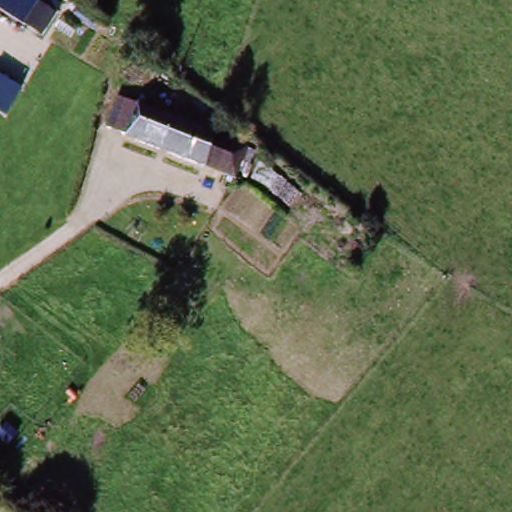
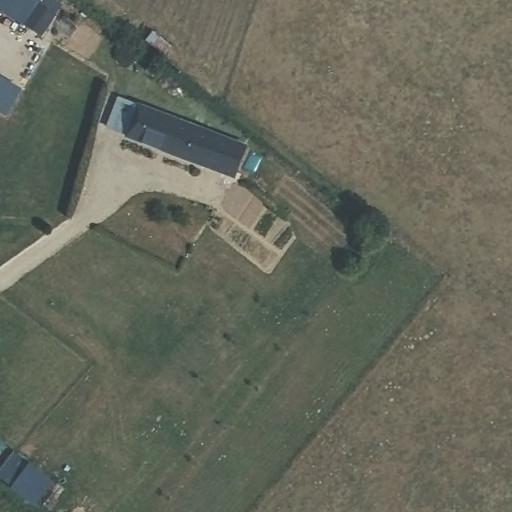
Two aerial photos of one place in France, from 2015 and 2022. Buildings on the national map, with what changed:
unchanged [(43,35),(0,6),(0,0),(38,0),(58,12),(43,35)]
unchanged [(6,115),(0,112),(0,74),(21,85),(6,115)]
unchanged [(104,127),(115,99),(213,135),(202,164),(104,127)]
unchanged [(213,135),(244,146),(232,175),(202,164),(213,135)]

